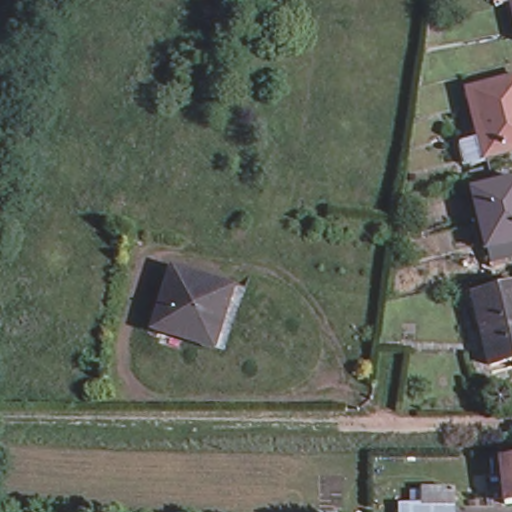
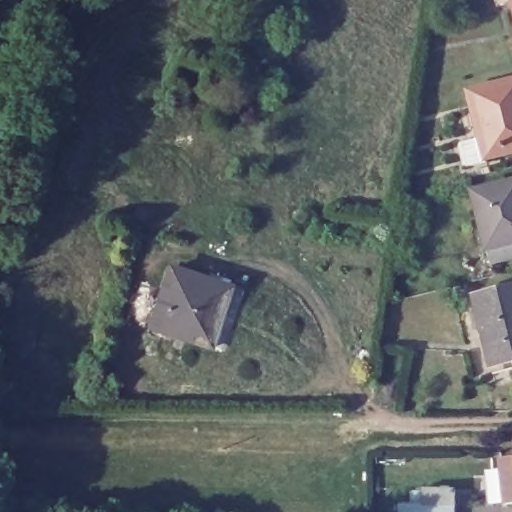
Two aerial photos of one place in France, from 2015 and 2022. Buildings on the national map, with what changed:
unchanged [(471,91),(512,81),(512,151),(486,157),(471,91)]
unchanged [(512,178),(512,251),(495,255),(492,242),(478,186),(512,178)]
unchanged [(161,325),(178,265),(230,280),(241,282),(224,344),(213,340),(161,325)]
unchanged [(479,295),(512,287),(512,361),(493,365),(479,295)]
unchanged [(512,459),(512,504),(509,505),(506,460),(512,459)]
unchanged [(449,510),(436,512),(418,512),(417,497),(448,493),(449,510)]

